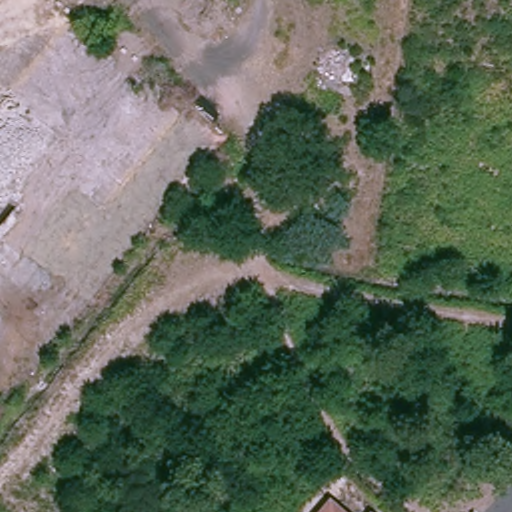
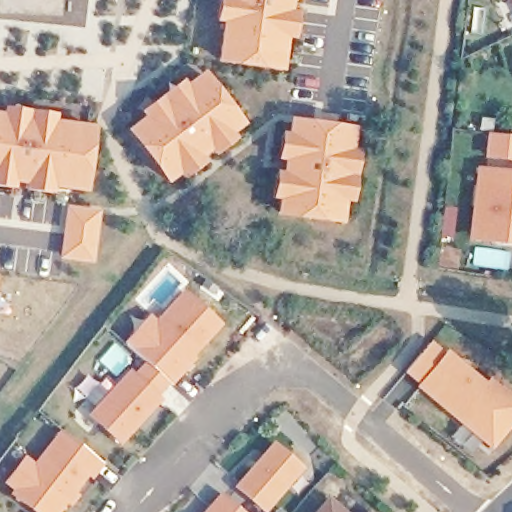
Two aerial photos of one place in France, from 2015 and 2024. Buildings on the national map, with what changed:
new [(292,1),(292,10),(297,11),(293,40),(287,39),(283,73),(261,70),(237,66),(216,61),(222,24),(215,22),(217,0),(299,0),(299,1),(292,1)]
new [(246,125),(233,134),(237,140),(215,156),(211,151),(202,157),(206,163),(182,180),(179,176),(167,186),(126,131),(143,117),(140,113),(182,79),(186,84),(204,71),(246,125)]
new [(2,114),(2,106),(57,114),(57,121),(96,126),(87,194),(55,190),(54,195),(25,191),(26,186),(16,185),(14,191),(0,189),(0,114),(2,114)]
new [(277,217),(278,201),(272,200),(275,171),(282,172),(283,161),(277,161),(280,133),(287,134),(289,118),(355,128),(352,149),(359,151),(352,204),(345,203),(342,225),(277,217)]
new [(512,246),(467,241),(477,166),(512,170),(512,246)]
new [(101,210),(95,264),(60,260),(67,205),(101,210)]
new [(222,324),(194,355),(198,360),(172,387),(170,384),(158,397),(164,400),(120,447),(87,416),(130,369),(135,373),(145,361),(123,344),(149,314),(156,321),(184,288),(222,324)]
new [(419,383),(405,373),(432,341),(448,349),(486,382),(492,376),(512,393),(512,426),(492,450),(417,388),(419,383)]
new [(103,465),(92,481),(87,478),(76,493),(80,496),(72,506),(68,503),(61,512),(31,512),(9,495),(12,491),(2,483),(24,455),(32,463),(59,430),(103,465)]
new [(273,442),(305,469),(267,512),(263,512),(233,487),(273,442)]
new [(220,492),(244,512),(203,512),(220,492)]
unchanged [(332,496),(351,512),(318,512),(332,496)]
unchanged [(371,509),(374,512),(368,512),(371,509)]

